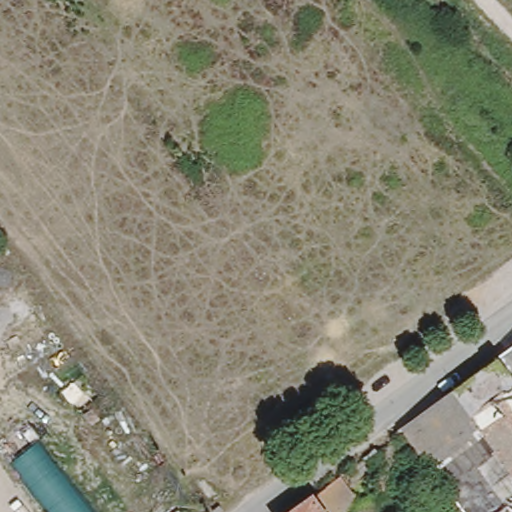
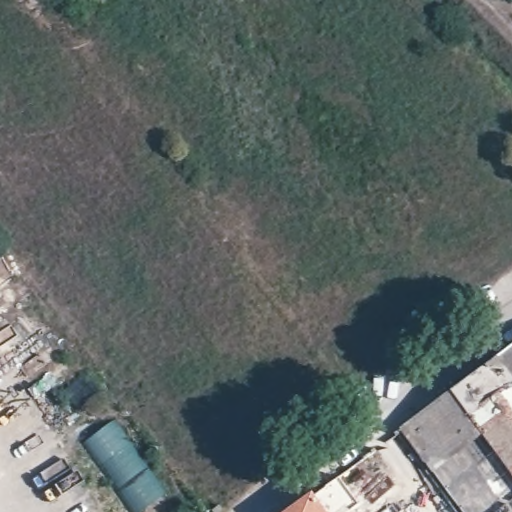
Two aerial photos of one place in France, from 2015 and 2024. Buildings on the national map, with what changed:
unchanged [(500,356),(512,347),(512,373),(500,356)]
unchanged [(402,428),(500,356),(512,373),(512,512),(463,512),(402,428)]
new [(167,493),(142,511),(88,439),(113,418),(167,493)]
demolished [(0,446),(0,445),(32,419),(103,512),(52,512),(0,446)]
unchanged [(339,474),(359,502),(345,512),(288,512),(339,474)]

